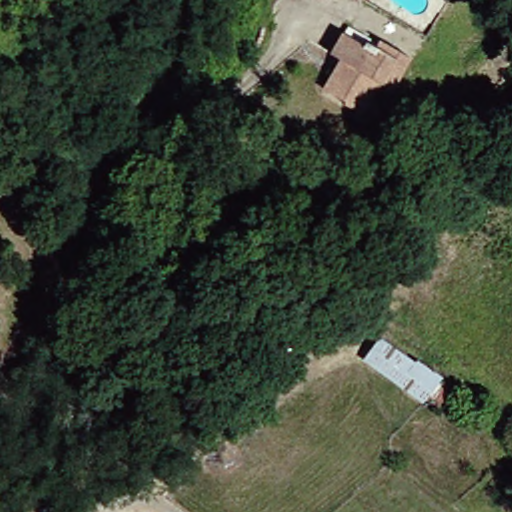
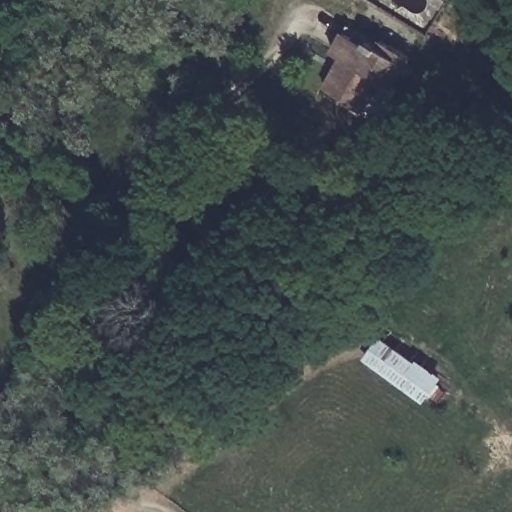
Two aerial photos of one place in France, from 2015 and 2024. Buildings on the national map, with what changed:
unchanged [(374,83),(370,81),(352,112),(334,102),(335,99),(313,87),(330,57),(320,51),(332,30),(355,42),(356,39),(370,46),(388,57),(374,83)]
unchanged [(434,384),(419,404),(361,362),(375,343),(434,384)]

